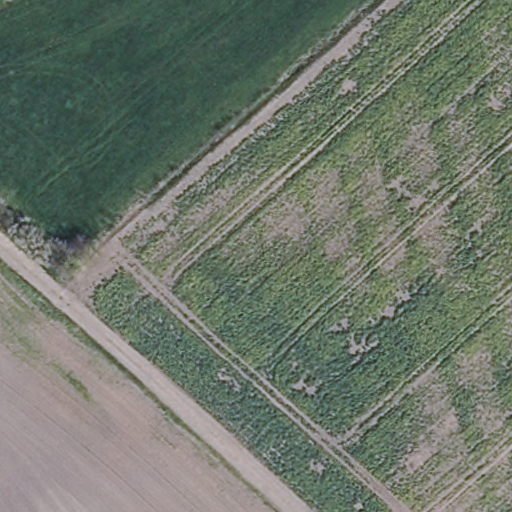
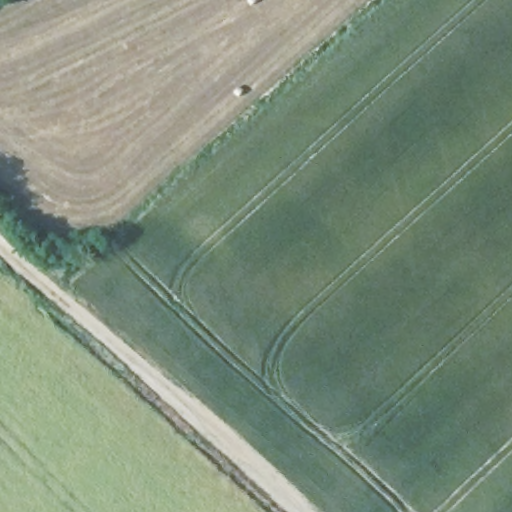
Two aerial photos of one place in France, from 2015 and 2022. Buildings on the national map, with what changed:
[]

